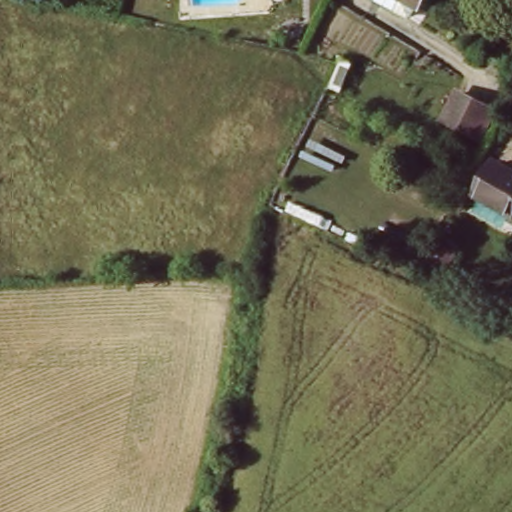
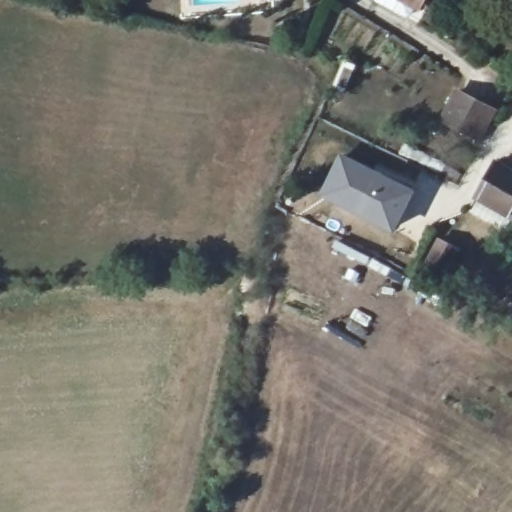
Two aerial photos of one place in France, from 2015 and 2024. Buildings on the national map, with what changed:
unchanged [(417,11),(396,0),(422,0),(417,11)]
unchanged [(493,112),(480,139),(445,120),(459,93),(493,112)]
new [(338,151),(415,189),(393,234),(317,195),(338,151)]
unchanged [(512,216),(510,220),(477,198),(500,161),(512,168),(512,216)]
new [(437,236),(467,254),(452,281),(422,265),(437,236)]

